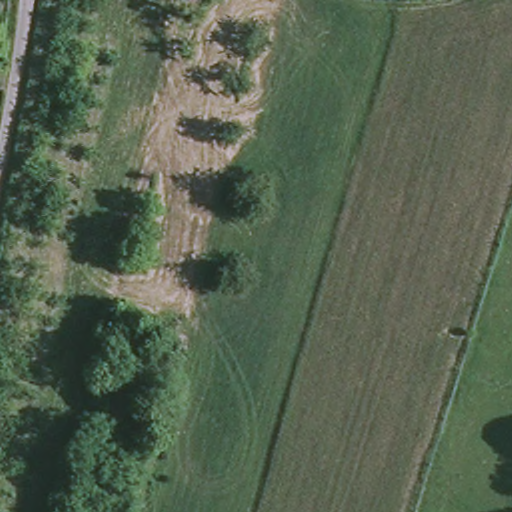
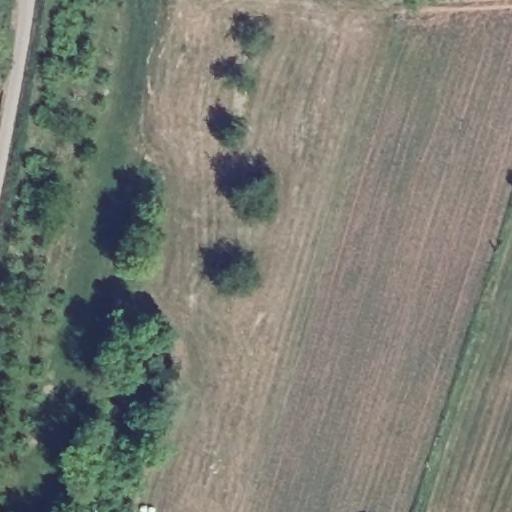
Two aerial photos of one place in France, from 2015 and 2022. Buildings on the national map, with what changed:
unchanged [(0,84),(0,59),(7,61),(0,84)]

